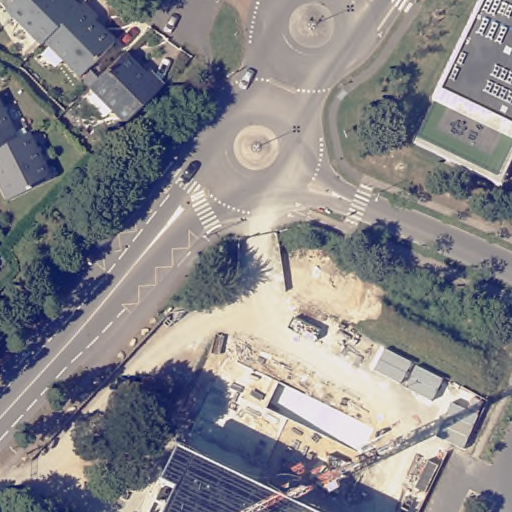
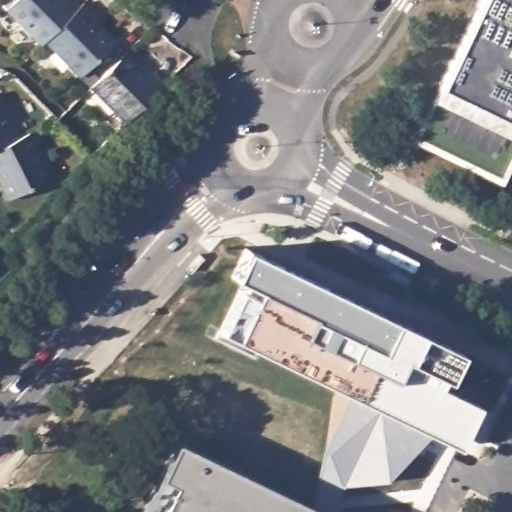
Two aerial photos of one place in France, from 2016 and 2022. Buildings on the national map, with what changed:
unchanged [(21,0),(75,0),(84,9),(48,44),(45,47),(10,11),(21,0)]
unchanged [(501,186),(413,142),(431,100),(480,0),(512,0),(512,163),(501,186)]
unchanged [(101,20),(98,24),(119,46),(84,80),(48,44),(84,9),(87,6),(101,20)]
unchanged [(90,86),(125,50),(146,70),(150,67),(164,82),(125,121),(90,86)]
unchanged [(0,145),(0,98),(18,136),(0,145)]
unchanged [(8,198),(0,184),(0,145),(18,136),(30,131),(52,176),(8,198)]
new [(253,347),(233,337),(256,289),(232,277),(244,248),(310,277),(314,271),(473,347),(458,383),(480,393),(477,401),(490,407),(470,452),(462,449),(458,457),(249,360),(253,347)]
unchanged [(176,441),(324,512),(141,512),(176,441)]

